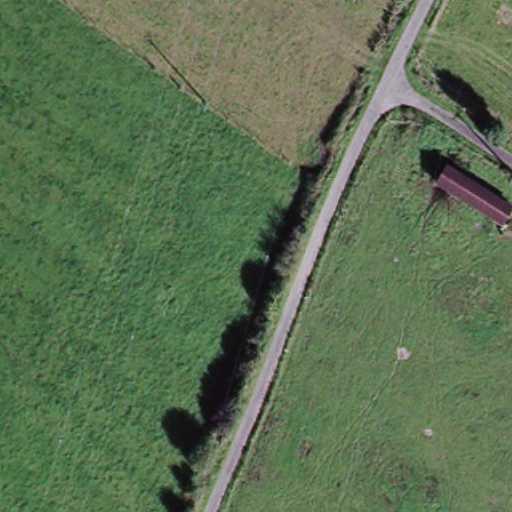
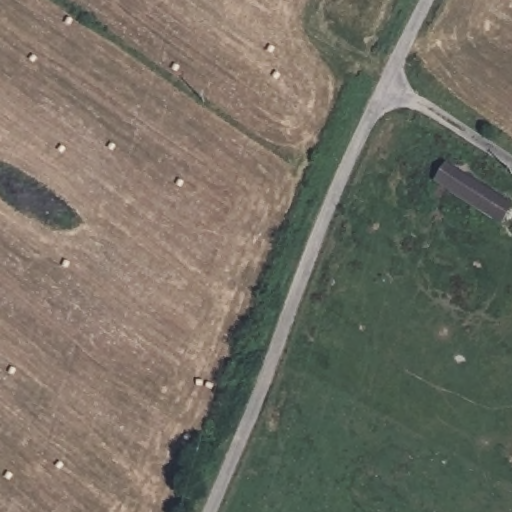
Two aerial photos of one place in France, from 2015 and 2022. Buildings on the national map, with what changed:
unchanged [(462,165),(512,199),(512,222),(508,227),(447,186),(462,165)]

